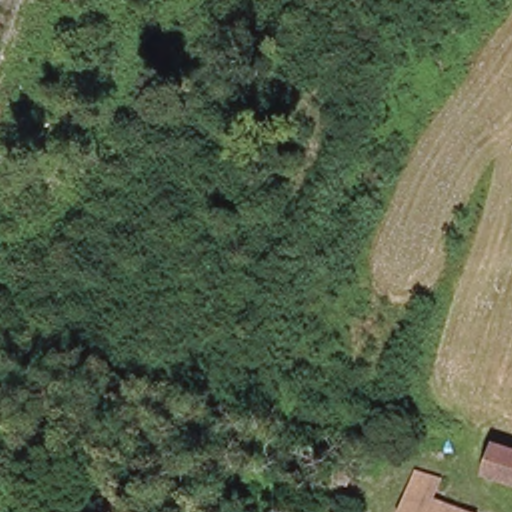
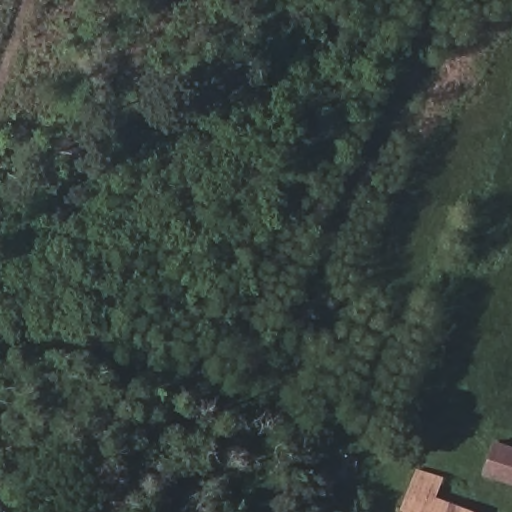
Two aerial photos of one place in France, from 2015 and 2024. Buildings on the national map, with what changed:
unchanged [(497,446),(512,449),(512,475),(490,469),(491,467),(497,446)]
unchanged [(415,470),(442,477),(436,497),(476,511),(476,512),(400,512),(415,470)]

